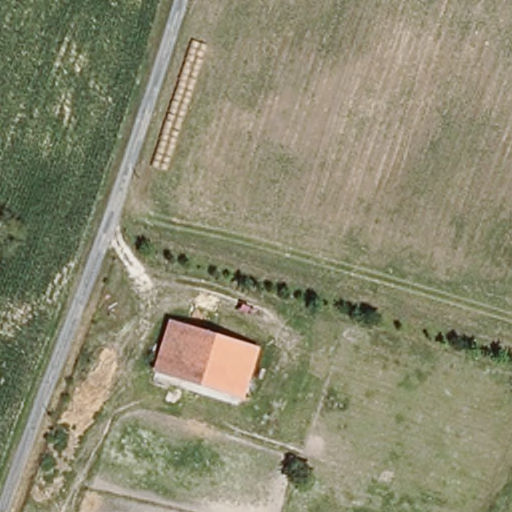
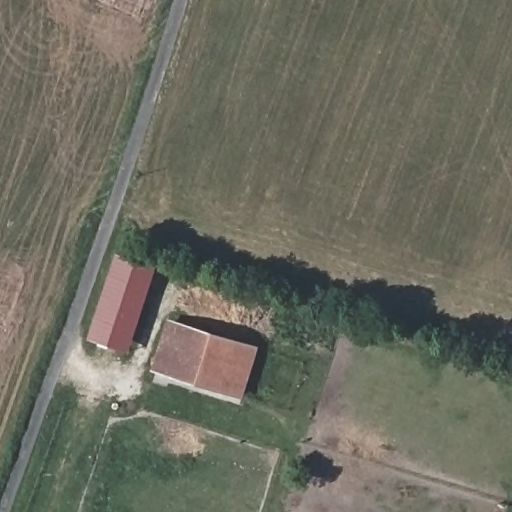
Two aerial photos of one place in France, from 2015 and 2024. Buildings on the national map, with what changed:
new [(117,253),(160,267),(129,352),(89,338),(117,253)]
unchanged [(245,396),(155,370),(170,321),(258,347),(245,396)]

